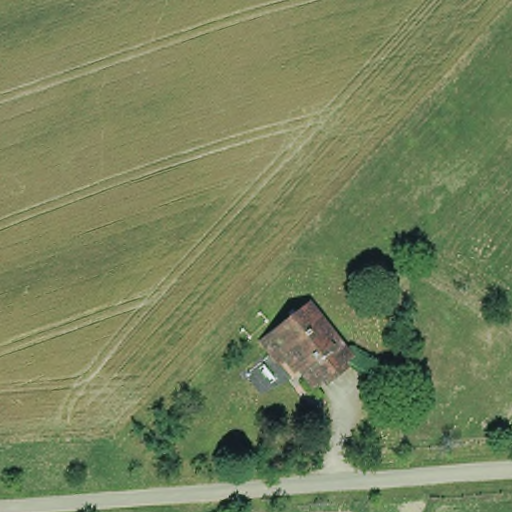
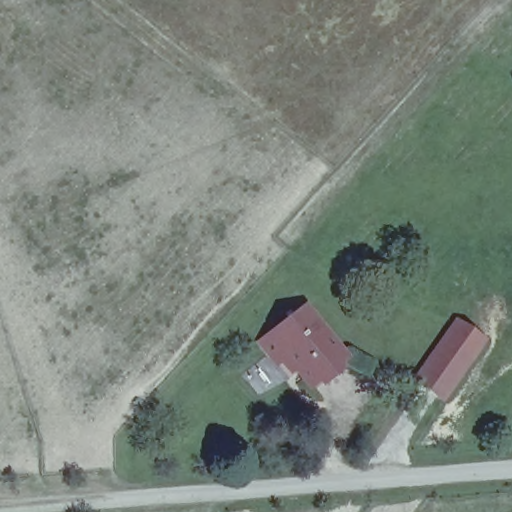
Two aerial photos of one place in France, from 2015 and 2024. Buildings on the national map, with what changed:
unchanged [(351,357),(372,363),(365,381),(352,379),(320,401),(296,368),(284,374),(262,346),(317,309),(351,357)]
new [(487,341),(444,404),(415,379),(457,321),(487,341)]

